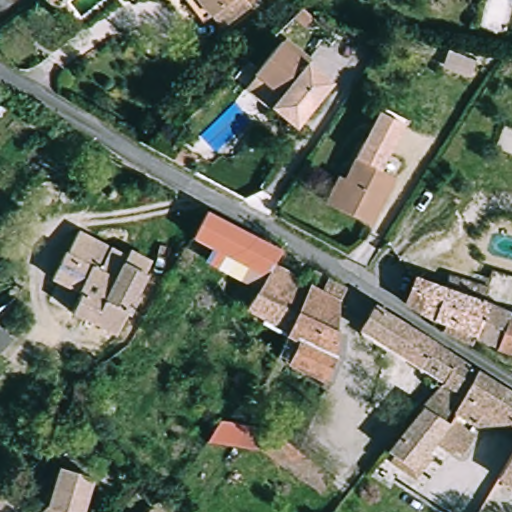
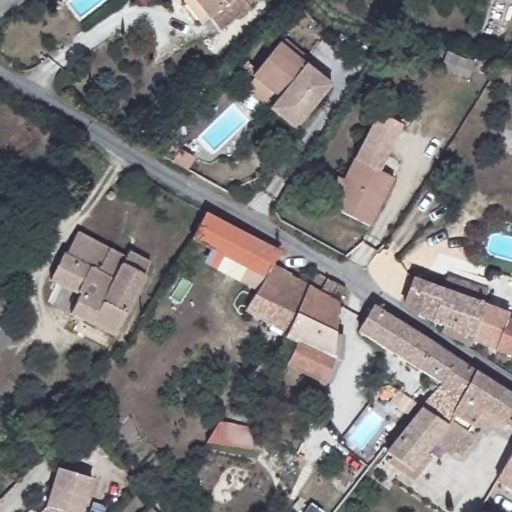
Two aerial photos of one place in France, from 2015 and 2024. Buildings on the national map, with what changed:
unchanged [(188,0),(250,0),(253,4),(223,29),(212,15),(205,20),(188,0)]
unchanged [(257,72),(254,70),(280,37),(334,80),(299,125),(274,105),(276,100),(251,80),(257,72)]
unchanged [(386,94),(411,105),(390,151),(365,140),(386,94)]
unchanged [(336,175),(346,180),(365,140),(390,151),(383,166),(397,173),(373,225),(334,207),(324,202),(336,175)]
unchanged [(181,174),(163,165),(167,159),(161,156),(165,151),(186,163),(181,174)]
unchanged [(281,255),(274,266),(265,281),(193,242),(208,216),(281,255)]
unchanged [(123,254),(150,266),(118,335),(74,315),(83,295),(51,280),(65,252),(73,235),(111,252),(122,257),(123,254)]
unchanged [(338,330),(336,360),(325,382),(332,386),(329,392),(304,377),(307,372),(281,357),(295,331),(250,305),(265,281),(274,266),(292,276),(306,285),(314,273),(342,290),(338,330)]
unchanged [(502,348),(471,338),(429,323),(403,303),(410,278),(443,289),(448,275),(485,286),(481,301),(510,311),(507,322),(512,324),(512,351),(502,348)]
unchanged [(440,419),(419,409),(442,382),(356,330),(372,305),(478,370),(440,419)]
unchanged [(0,351),(0,329),(11,340),(0,351)]
unchanged [(478,421),(470,428),(461,433),(469,438),(458,459),(429,440),(413,465),(386,450),(419,409),(440,419),(478,370),(512,391),(512,428),(482,410),(478,421)]
unchanged [(338,473),(322,496),(257,450),(206,445),(223,416),(266,421),(306,449),(338,473)]
unchanged [(497,480),(512,456),(512,489),(497,480)]
unchanged [(88,512),(43,512),(51,502),(54,492),(60,468),(98,478),(88,512)]
unchanged [(155,512),(151,512),(153,510),(155,512)]

